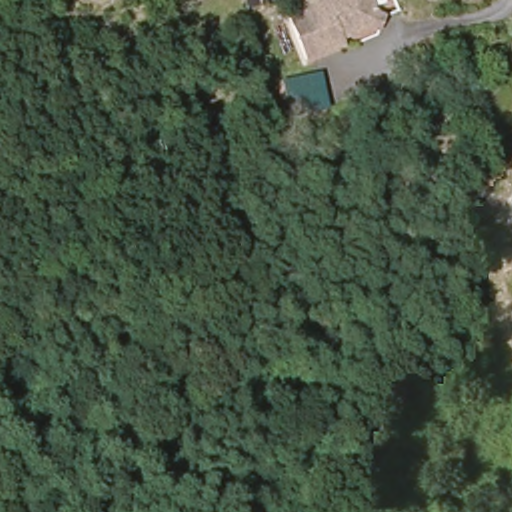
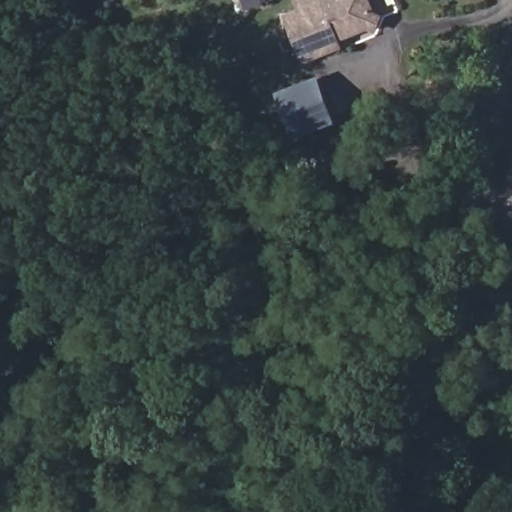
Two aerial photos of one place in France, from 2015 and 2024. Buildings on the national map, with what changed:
demolished [(144,16),(111,5),(113,0),(149,0),(144,16)]
unchanged [(373,14),(380,16),(375,29),(368,26),(337,37),(340,45),(305,59),(287,15),(301,10),(296,0),(368,0),(373,14)]
new [(293,139),(276,93),(318,77),(335,124),(293,139)]

